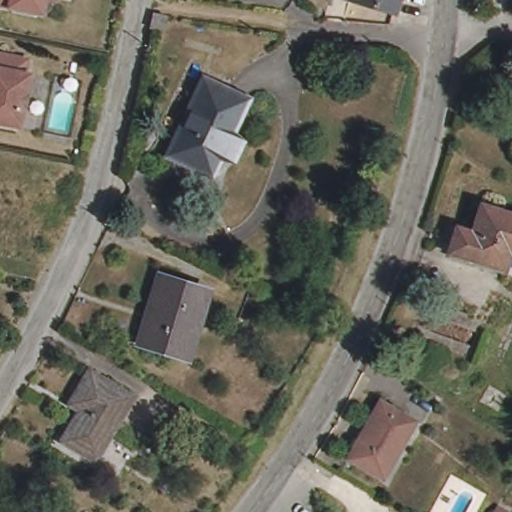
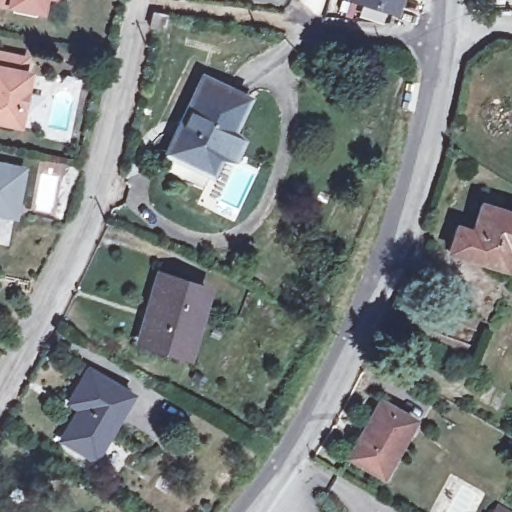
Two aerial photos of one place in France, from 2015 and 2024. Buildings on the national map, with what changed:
unchanged [(33,10),(0,3),(0,0),(34,0),(33,10)]
unchanged [(397,5),(378,0),(398,0),(397,5)]
unchanged [(152,26),(149,25),(151,12),(164,14),(162,27),(152,26)]
unchanged [(24,53),(21,66),(26,67),(16,119),(0,115),(0,48),(24,53)]
unchanged [(203,172),(161,151),(197,77),(223,90),(239,99),(223,132),(233,140),(224,156),(212,155),(203,172)]
new [(0,211),(0,164),(22,169),(16,199),(13,214),(0,211)]
unchanged [(453,255),(461,232),(476,237),(485,210),(512,218),(512,274),(506,272),(453,255)]
unchanged [(186,352),(139,338),(158,276),(204,290),(186,352)]
unchanged [(74,415),(78,417),(83,410),(68,402),(88,370),(131,396),(93,458),(61,438),(74,415)]
unchanged [(381,476),(348,456),(379,401),(414,420),(381,476)]
unchanged [(498,500),(512,510),(512,512),(492,512),(491,511),(498,500)]

